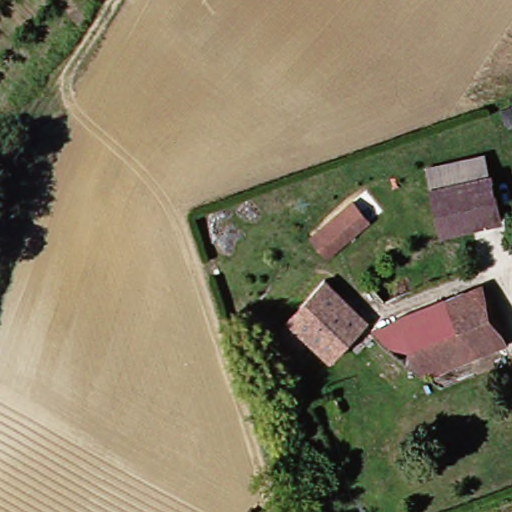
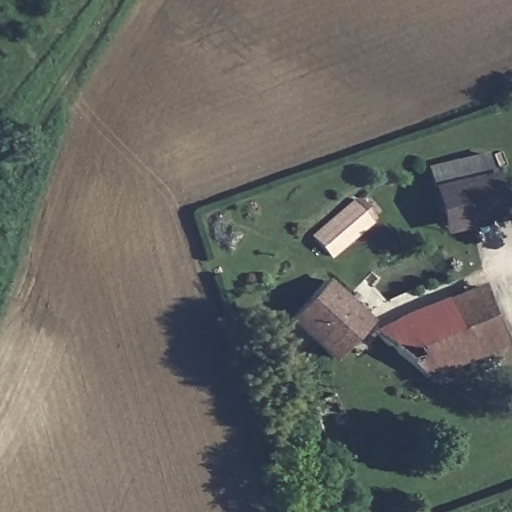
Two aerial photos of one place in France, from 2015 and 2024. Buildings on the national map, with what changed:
unchanged [(441,186),(436,168),(494,152),(501,172),(512,210),(512,219),(454,231),(441,186)]
unchanged [(356,203),(373,222),(330,258),(311,239),(356,203)]
unchanged [(290,323),(334,278),(377,317),(336,365),(290,323)]
unchanged [(453,298),(484,286),(505,352),(489,360),(453,298)]
unchanged [(399,343),(385,327),(404,316),(453,298),(489,360),(433,381),(399,343)]
unchanged [(414,393),(381,362),(399,343),(433,381),(414,393)]

